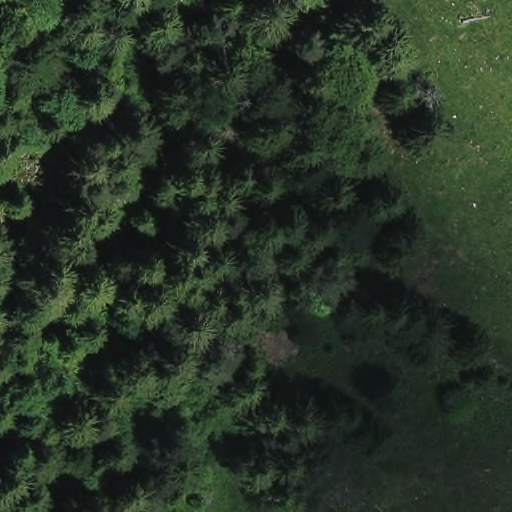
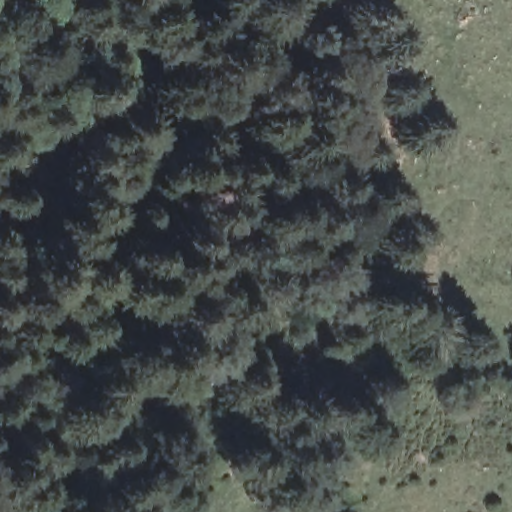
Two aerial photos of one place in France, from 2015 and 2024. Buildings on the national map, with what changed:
[]

